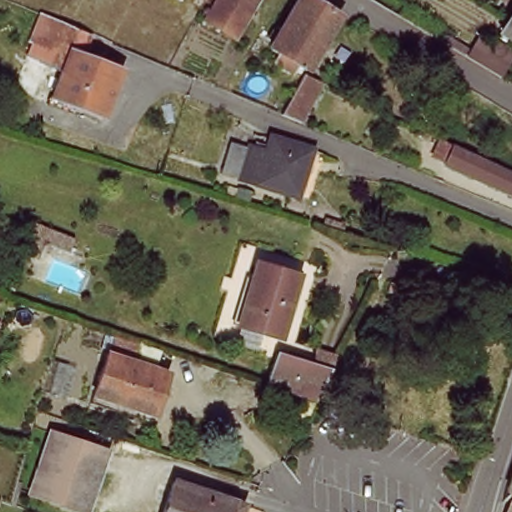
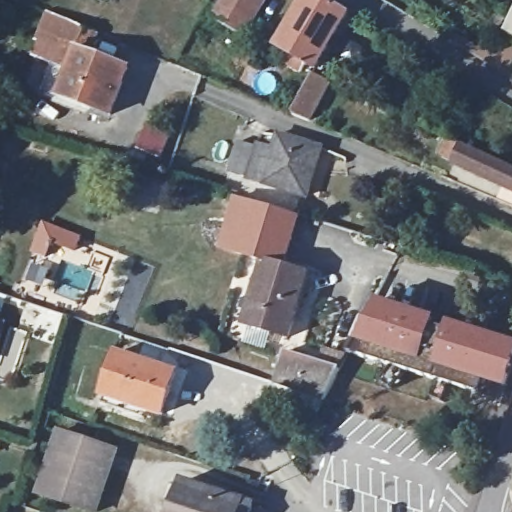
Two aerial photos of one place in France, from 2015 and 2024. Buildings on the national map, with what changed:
unchanged [(207,4),(200,0),(209,0),(207,4)]
unchanged [(207,20),(220,0),(269,0),(273,2),(260,24),(248,45),(207,20)]
unchanged [(309,65),(304,74),(284,62),(289,54),(280,49),(309,0),(324,0),(336,6),(350,15),(319,71),(309,65)]
unchanged [(131,70),(113,117),(62,97),(81,50),(66,44),(63,51),(43,43),(55,15),(71,22),(75,24),(103,35),(95,55),(131,70)]
unchanged [(504,45),(512,31),(512,50),(504,45)]
unchanged [(317,74),(336,82),(314,124),(299,117),(294,115),(317,74)]
unchanged [(458,161),(444,156),(453,139),(465,145),(512,168),(512,188),(458,161)]
unchanged [(266,152),(282,158),(288,144),(329,160),(311,206),(254,185),(266,152)]
unchanged [(246,147),(261,152),(249,184),(234,178),(246,147)]
new [(263,262),(216,247),(229,195),(299,217),(283,268),(263,262)]
unchanged [(46,221),(84,235),(80,247),(54,238),(48,255),(36,250),(46,221)]
unchanged [(263,262),(283,268),(309,277),(289,340),(243,325),(263,262)]
unchanged [(29,303),(43,309),(38,325),(23,321),(29,303)]
new [(427,326),(424,335),(434,338),(438,330),(510,352),(497,398),(423,376),(426,368),(417,366),(414,374),(346,350),(361,305),(427,326)]
unchanged [(0,327),(4,328),(0,340),(0,327)]
unchanged [(166,377),(179,382),(166,422),(148,416),(146,425),(101,410),(125,342),(171,358),(166,377)]
unchanged [(275,382),(285,352),(341,371),(326,400),(275,382)]
unchanged [(69,360),(85,365),(75,398),(59,393),(69,360)]
unchanged [(118,452),(98,512),(93,512),(39,494),(59,432),(118,452)]
unchanged [(255,506),(253,512),(174,512),(185,480),(255,506)]

